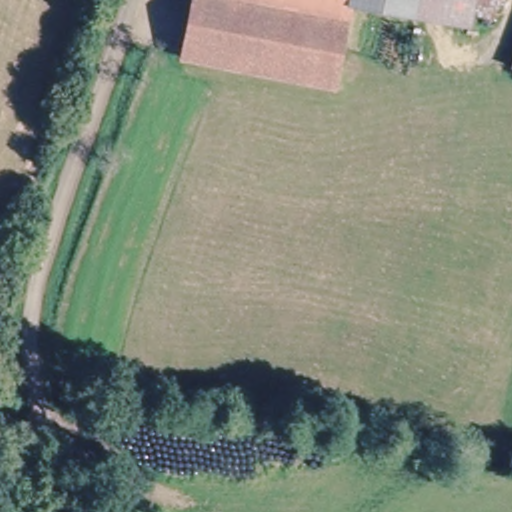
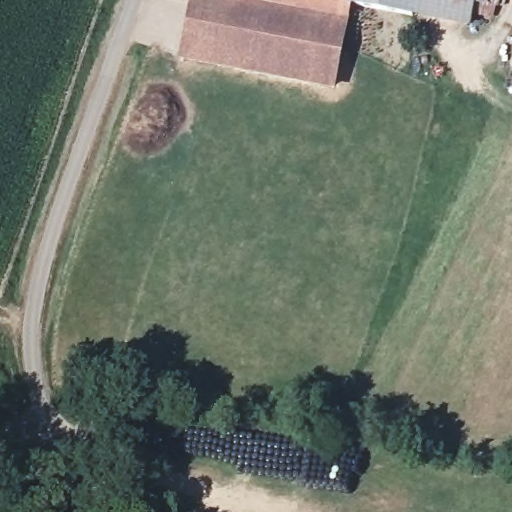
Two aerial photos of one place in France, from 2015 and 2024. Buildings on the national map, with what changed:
unchanged [(187,0),(414,0),(412,15),(343,1),(327,89),(175,60),(187,0)]
unchanged [(414,0),(469,0),(464,26),(412,15),(414,0)]

